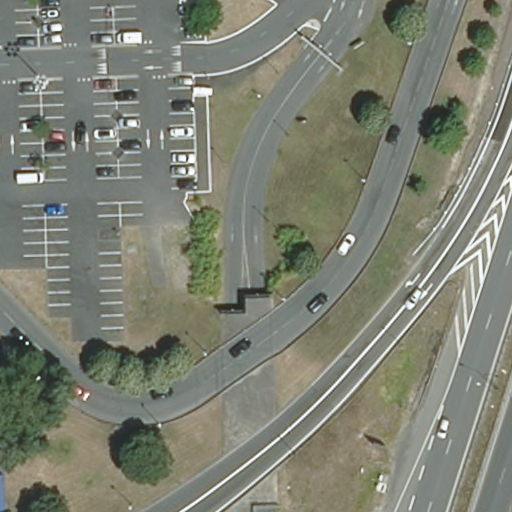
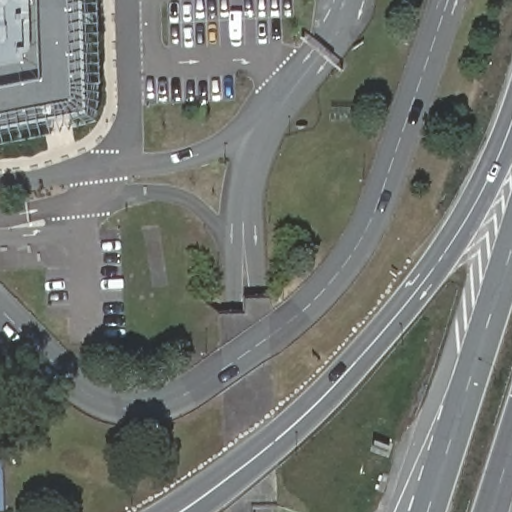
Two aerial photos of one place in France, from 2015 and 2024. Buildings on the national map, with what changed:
new [(0,129),(0,0),(85,0),(88,112),(0,129)]

